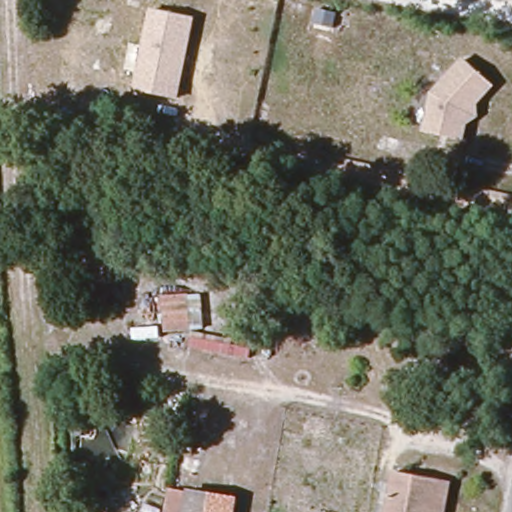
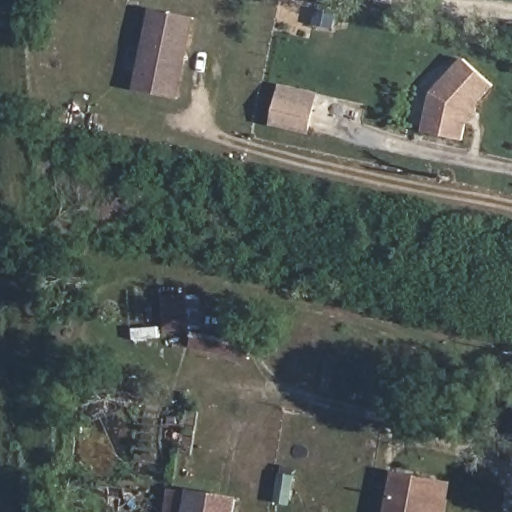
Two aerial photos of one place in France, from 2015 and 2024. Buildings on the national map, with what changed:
unchanged [(181,99),(133,90),(149,9),(195,17),(181,99)]
unchanged [(478,105),(481,119),(467,125),(465,139),(421,134),(430,94),(460,60),(494,89),(478,105)]
new [(280,84),(317,93),(310,135),(271,126),(280,84)]
unchanged [(164,333),(164,295),(189,294),(191,329),(164,333)]
unchanged [(431,512),(389,512),(397,473),(436,480),(431,512)]
unchanged [(453,483),(447,512),(431,512),(436,480),(453,483)]
unchanged [(166,489),(190,493),(191,489),(240,497),(238,512),(164,512),(166,489)]

